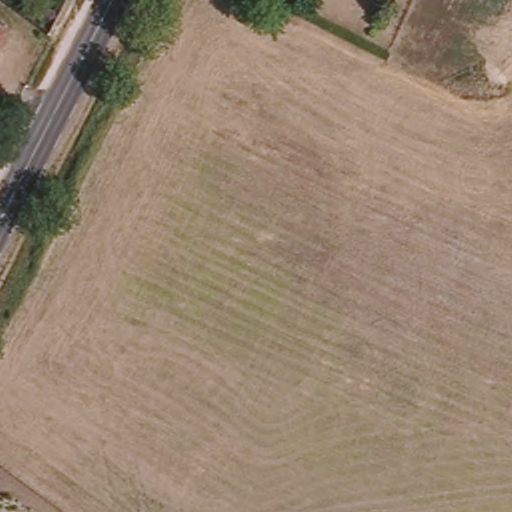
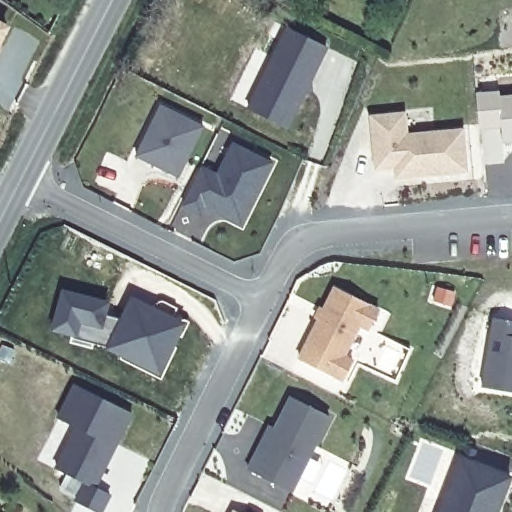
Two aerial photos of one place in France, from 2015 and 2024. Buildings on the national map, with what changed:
unchanged [(3,29),(0,35),(0,28),(3,29)]
new [(289,29),(326,48),(286,128),(248,109),(289,29)]
new [(498,97),(512,96),(512,139),(500,140),(499,125),(477,127),(474,94),(498,92),(498,97)]
new [(160,105),(202,126),(178,176),(135,155),(160,105)]
new [(393,166),(374,167),(369,116),(402,113),(404,134),(460,129),(464,171),(418,174),(394,176),(394,171),(393,166)]
new [(220,214),(210,209),(203,205),(199,213),(182,204),(201,167),(216,175),(232,144),(270,164),(246,210),(239,224),(220,214)]
new [(332,286),(376,308),(366,328),(357,323),(340,355),(349,359),(339,379),(296,356),(332,286)]
new [(62,292),(106,303),(103,315),(121,320),(124,318),(133,322),(145,311),(168,323),(169,320),(181,326),(170,347),(165,344),(152,371),(138,363),(135,361),(133,357),(133,352),(114,346),(111,348),(108,348),(72,338),(73,335),(52,329),(62,292)]
new [(512,322),(512,393),(479,387),(491,318),(512,322)]
new [(72,385),(115,407),(128,413),(112,443),(91,487),(105,494),(96,512),(93,512),(72,502),(81,483),(53,468),(73,427),(55,418),(72,385)]
new [(265,426),(270,429),(286,397),(325,417),(287,492),(243,468),(251,453),(265,426)]
new [(506,476),(492,512),(435,512),(456,457),(506,476)]
new [(237,512),(230,512),(231,509),(237,512)]

